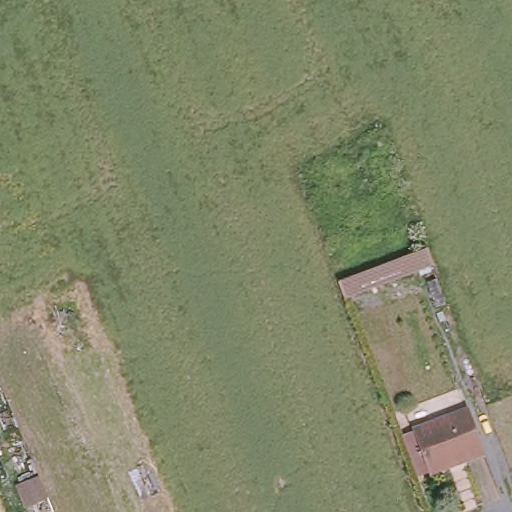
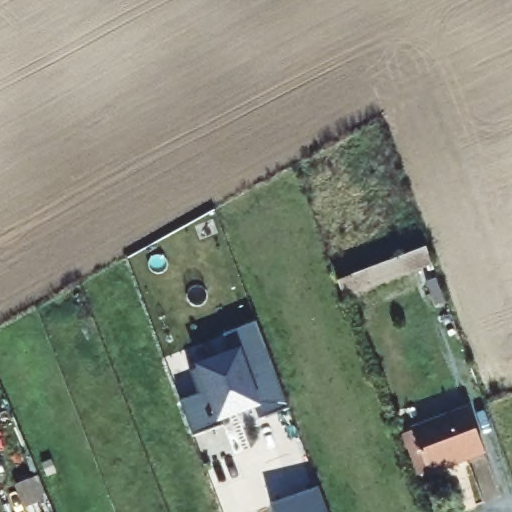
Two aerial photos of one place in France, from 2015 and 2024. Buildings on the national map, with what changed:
unchanged [(336,268),(425,237),(435,267),(347,298),(336,268)]
new [(263,421),(258,407),(225,420),(227,427),(197,438),(183,402),(202,395),(193,372),(235,356),(227,335),(261,322),(294,410),(263,421)]
unchanged [(487,449),(432,469),(416,427),(470,407),(487,449)]
new [(274,507),(323,489),(332,512),(276,512),(274,507)]

